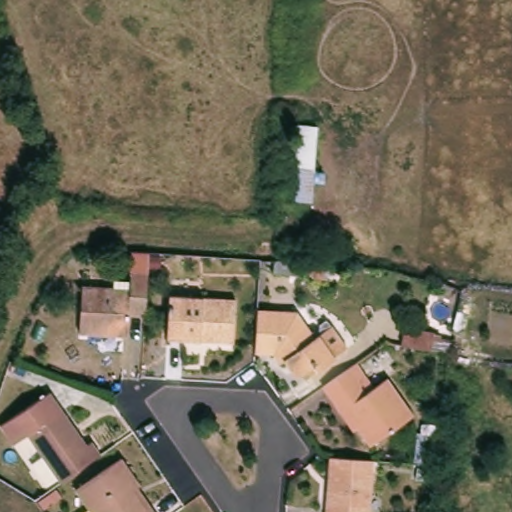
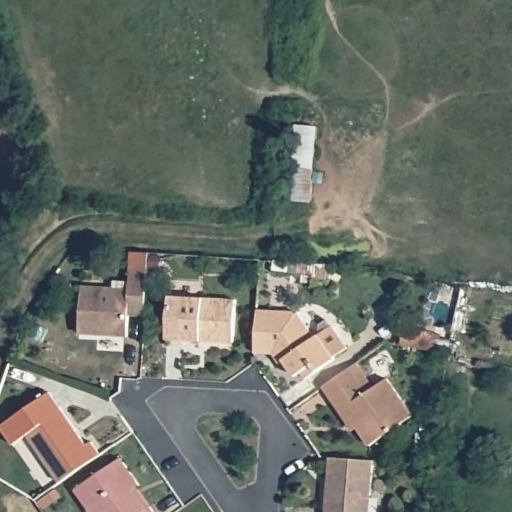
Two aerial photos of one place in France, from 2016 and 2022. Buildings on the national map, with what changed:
unchanged [(298,123),(327,125),(319,203),(292,200),(298,123)]
unchanged [(132,336),(83,333),(86,286),(118,288),(118,280),(135,281),(137,250),(154,251),(166,252),(165,272),(152,271),(150,307),(150,315),(133,314),(132,336)]
unchanged [(298,263),(297,274),(273,272),(273,261),(298,263)]
unchanged [(238,342),(172,338),(174,296),(240,299),(238,342)]
unchanged [(300,311),(318,337),(322,334),(335,325),(351,347),(338,356),(339,358),(309,378),(305,371),(299,375),(288,359),(284,362),(278,353),(260,352),(262,309),(300,311)]
unchanged [(430,350),(400,344),(404,327),(433,333),(433,336),(449,339),(446,353),(430,350)]
unchanged [(345,412),(327,386),(361,363),(370,375),(378,387),(391,378),(417,415),(374,445),(361,426),(357,429),(345,412)]
unchanged [(96,444),(100,440),(109,454),(69,482),(36,434),(22,444),(9,425),(59,391),(96,444)]
unchanged [(378,512),(335,512),(340,456),(383,460),(378,512)]
unchanged [(125,458),(144,485),(141,487),(155,507),(159,512),(96,512),(80,489),(125,458)]

